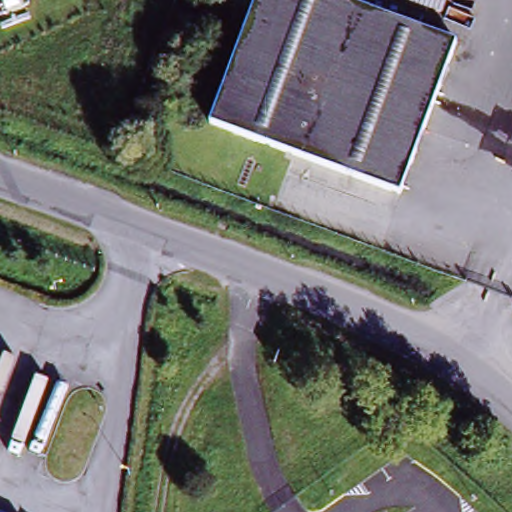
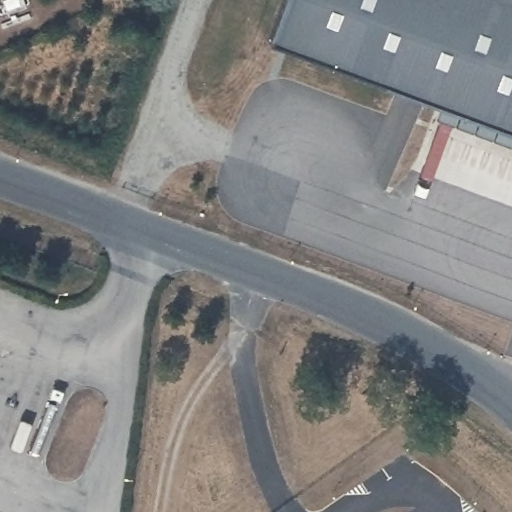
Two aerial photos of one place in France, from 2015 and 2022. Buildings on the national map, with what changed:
demolished [(449,42),(392,194),(201,123),(248,0),(331,0),(449,42)]
new [(512,128),(265,37),(279,0),(512,0),(512,128)]

